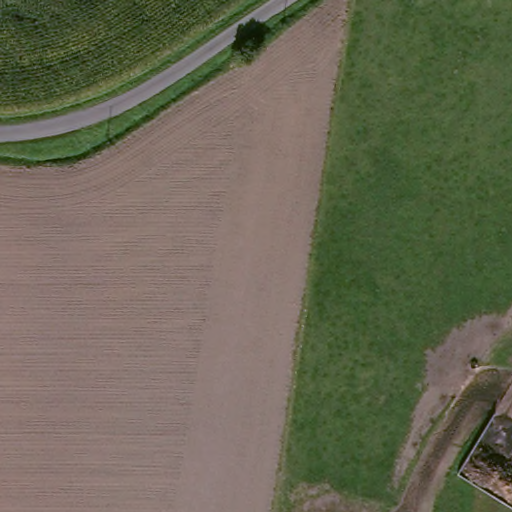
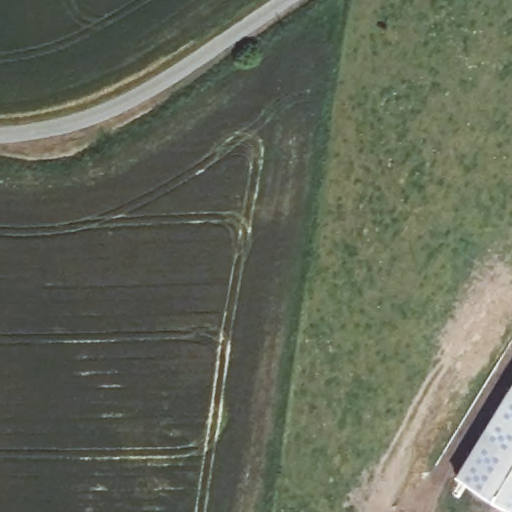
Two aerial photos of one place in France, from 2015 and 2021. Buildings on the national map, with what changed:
new [(455,474),(512,381),(512,507),(455,474)]

